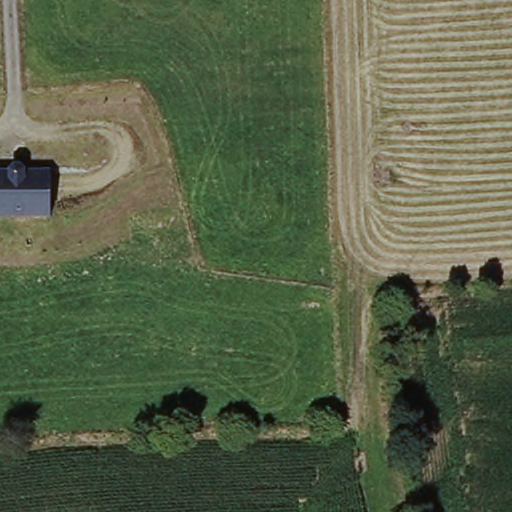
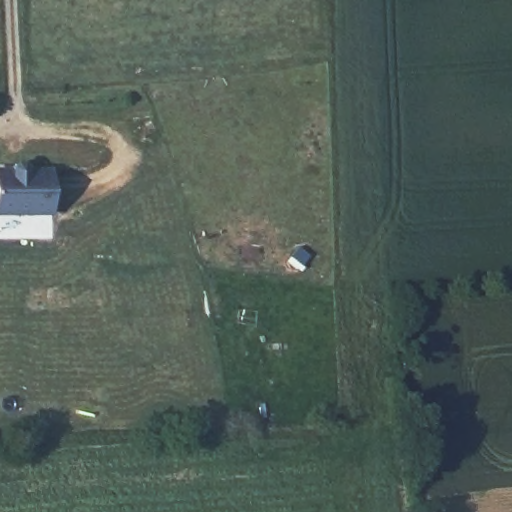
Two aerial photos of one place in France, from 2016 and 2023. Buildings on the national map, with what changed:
unchanged [(55,211),(0,212),(0,167),(54,167),(55,211)]

